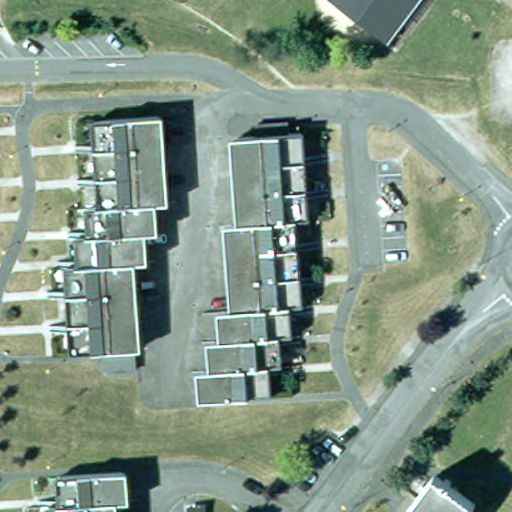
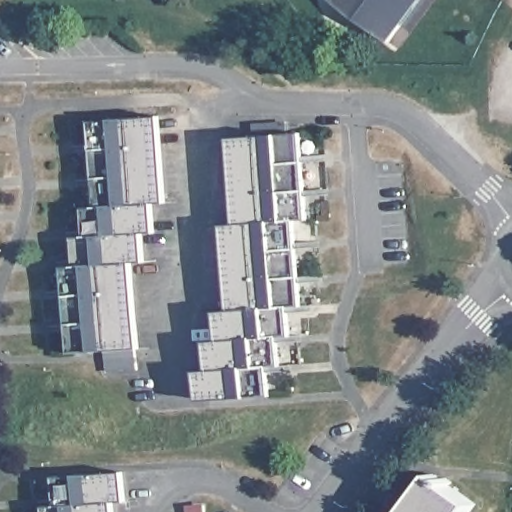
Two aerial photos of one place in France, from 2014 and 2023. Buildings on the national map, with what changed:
unchanged [(334,2),(335,0),(430,0),(392,49),(334,2)]
unchanged [(164,193),(152,193),(154,223),(141,224),(143,253),(131,254),(136,340),(132,341),(135,362),(106,363),(105,343),(71,344),(67,257),(79,256),(77,228),(90,228),(89,198),(101,198),(95,111),(158,108),(164,193)]
unchanged [(307,216),(294,217),(301,302),(287,303),(290,333),(277,334),(279,362),(267,363),(269,393),(205,397),(202,367),(217,366),(215,338),(226,337),(224,308),(236,307),(229,222),(244,220),(237,134),(254,134),(255,119),(261,119),(280,117),(286,116),(286,122),(286,130),(301,130),(307,216)]
unchanged [(125,496),(114,497),(115,512),(51,512),(50,501),(62,500),(61,471),(123,467),(125,496)]
unchanged [(432,470),(471,500),(461,512),(400,512),(432,470)]
unchanged [(191,512),(207,511),(207,512),(191,512)]

